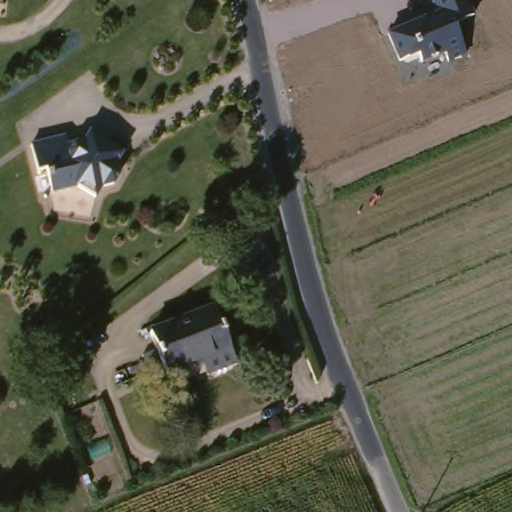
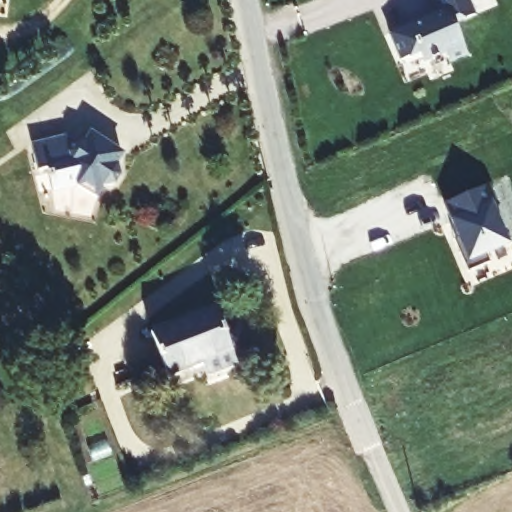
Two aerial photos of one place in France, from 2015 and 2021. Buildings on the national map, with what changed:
unchanged [(446,54),(422,62),(420,53),(398,62),(387,34),(436,12),(431,0),(471,0),(477,16),(456,24),(467,55),(450,62),(446,54)]
unchanged [(117,162),(119,177),(112,187),(100,188),(94,199),(76,192),(51,196),(45,173),(39,174),(32,144),(66,138),(68,146),(82,142),(91,132),(97,138),(122,155),(117,162)]
new [(440,205),(484,185),(492,203),(488,205),(505,245),(483,255),(487,263),(463,273),(455,253),(449,240),(453,238),(440,205)]
unchanged [(206,385),(202,369),(166,384),(152,344),(215,320),(230,358),(236,373),(206,385)]

